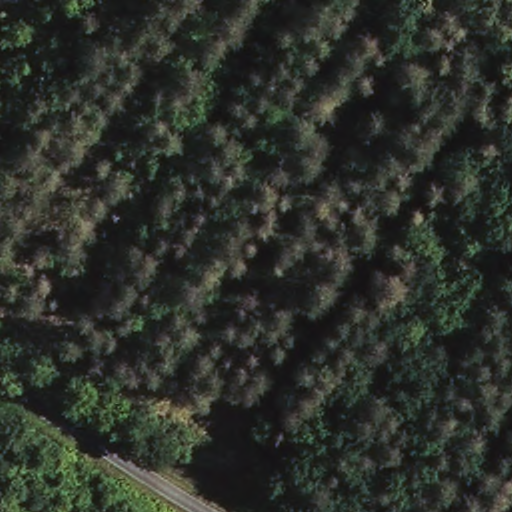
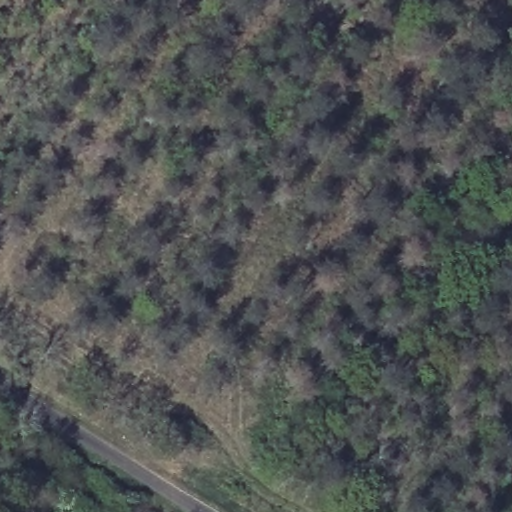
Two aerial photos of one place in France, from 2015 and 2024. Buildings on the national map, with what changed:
unchanged [(466,336),(450,330),(458,309),(474,315),(466,336)]

